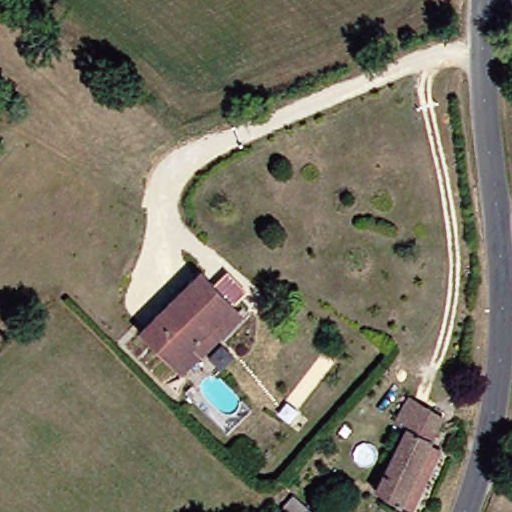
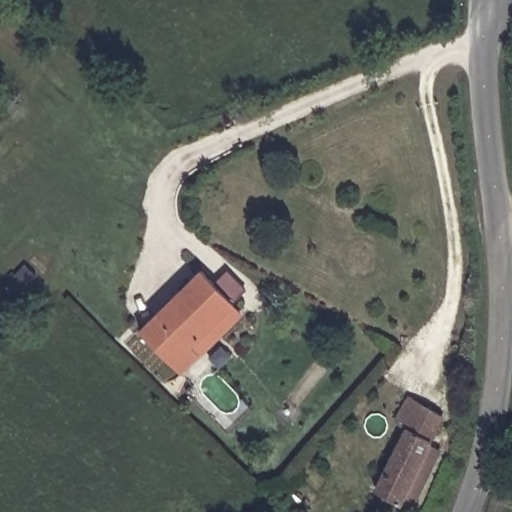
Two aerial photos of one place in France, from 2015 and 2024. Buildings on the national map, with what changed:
unchanged [(205,358),(186,375),(147,332),(209,276),(242,311),(249,320),(205,358)]
unchanged [(402,423),(417,398),(451,417),(404,500),(382,488),(414,430),(402,423)]

